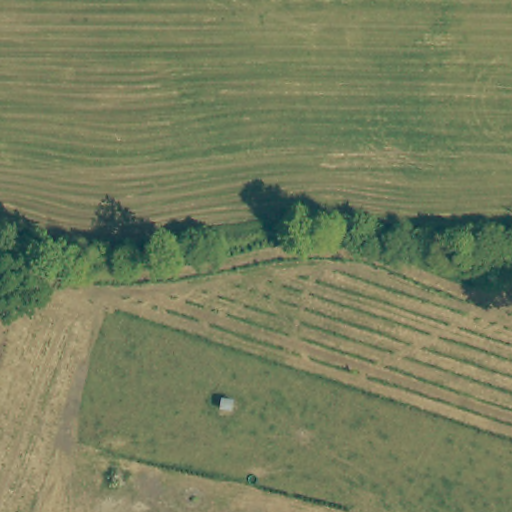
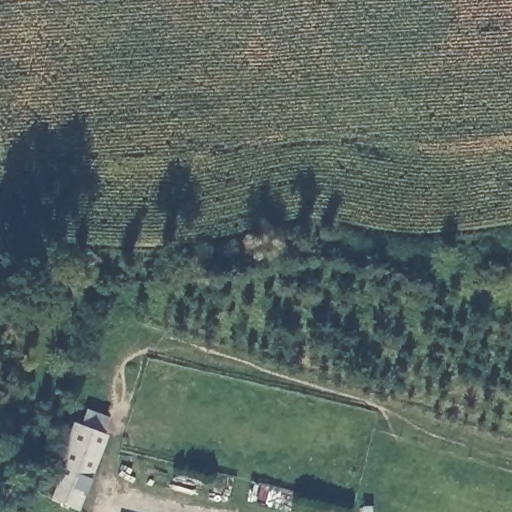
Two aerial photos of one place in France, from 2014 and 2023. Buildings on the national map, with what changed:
new [(57,482),(51,480),(74,420),(82,424),(87,407),(109,417),(105,433),(109,435),(80,510),(50,499),(57,482)]

